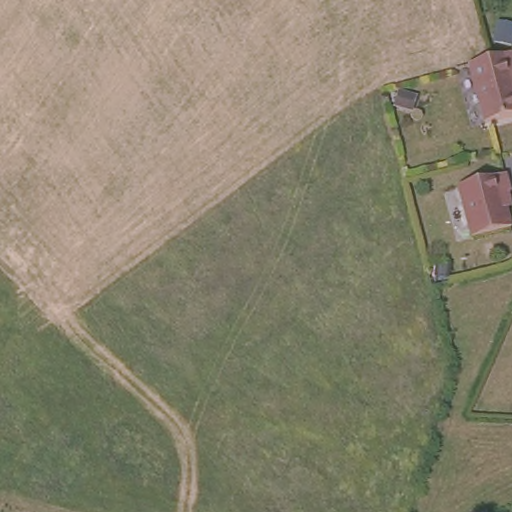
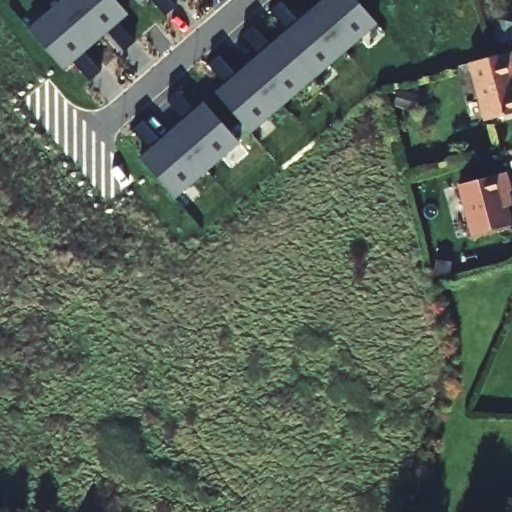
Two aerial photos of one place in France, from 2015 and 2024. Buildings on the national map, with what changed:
new [(62,69),(27,27),(60,0),(115,0),(127,14),(109,29),(102,22),(75,46),(81,53),(62,69)]
new [(138,4),(135,0),(142,0),(138,4)]
new [(216,92),(235,76),(240,83),(268,59),(262,52),(297,23),(302,30),(330,6),(325,0),(357,0),(377,24),(251,133),(216,92)]
unchanged [(512,61),(512,85),(512,88),(512,120),(483,128),(467,69),(487,64),(511,57),(512,61)]
new [(205,102),(240,143),(175,198),(140,157),(159,142),(165,149),(192,125),(186,118),(205,102)]
unchanged [(509,188),(502,190),(510,221),(470,233),(457,181),(502,167),(509,188)]

